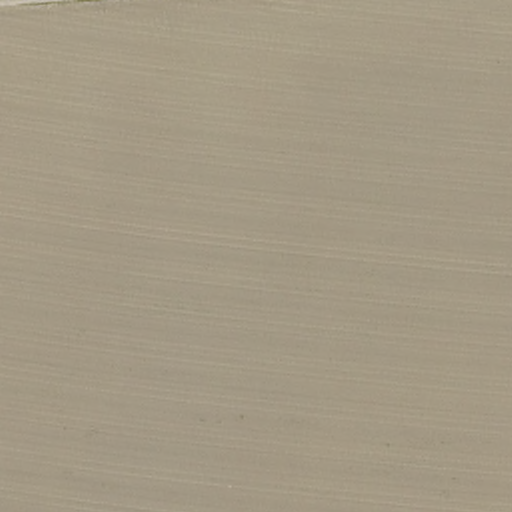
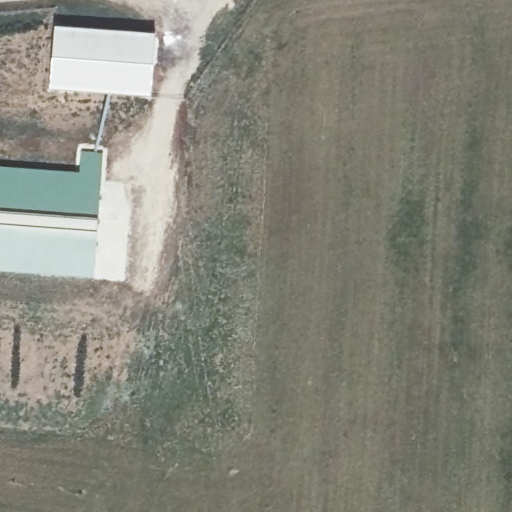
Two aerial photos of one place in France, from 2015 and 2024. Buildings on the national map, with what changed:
new [(150,99),(50,91),(56,29),(156,36),(150,99)]
new [(81,174),(85,153),(104,154),(95,279),(0,276),(0,169),(81,174)]

